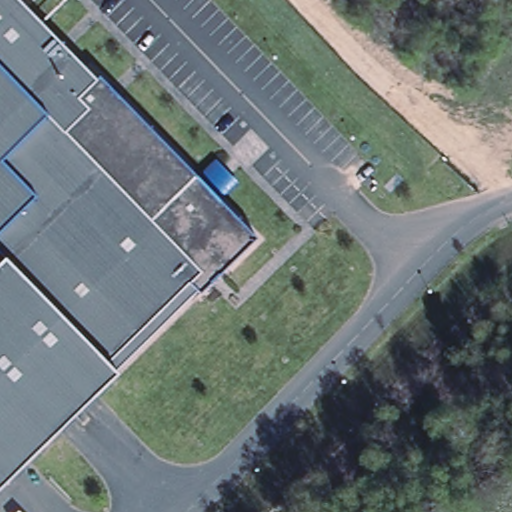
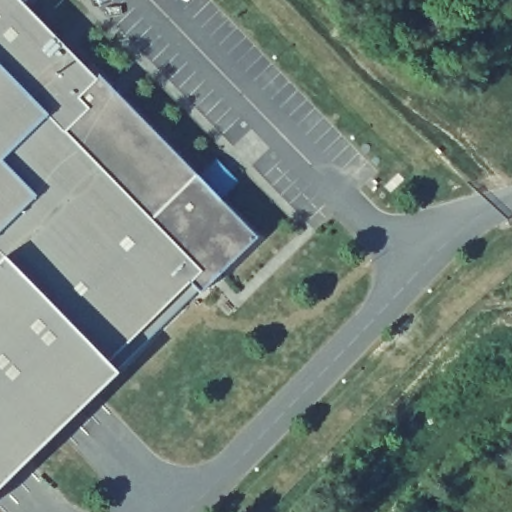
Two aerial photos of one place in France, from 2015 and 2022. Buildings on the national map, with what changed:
unchanged [(103,73),(261,234),(205,290),(201,287),(119,367),(123,370),(0,491),(0,0),(24,0),(99,77),(103,73)]

